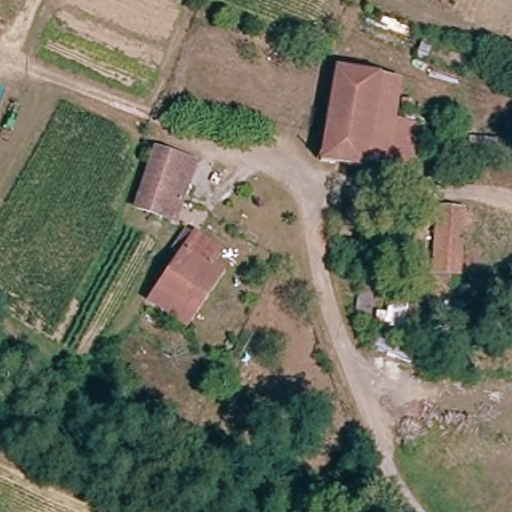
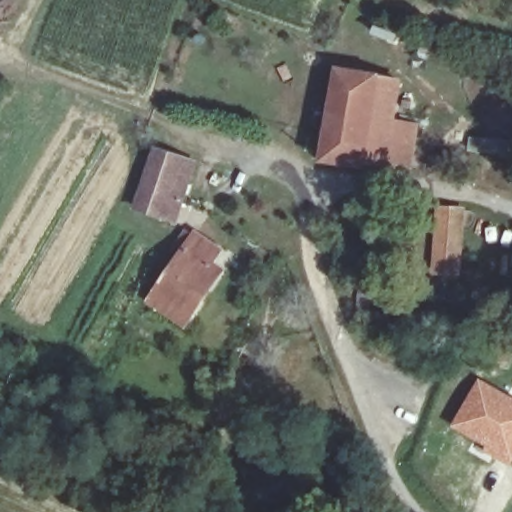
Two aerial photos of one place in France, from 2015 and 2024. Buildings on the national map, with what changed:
unchanged [(362,167),(361,171),(321,164),(335,70),(377,75),(362,167)]
unchanged [(402,80),(396,120),(387,169),(362,167),(377,75),(402,80)]
unchanged [(0,95),(0,87),(2,88),(0,95)]
unchanged [(420,123),(410,174),(387,169),(396,120),(420,123)]
unchanged [(193,160),(173,217),(136,204),(153,147),(193,160)]
unchanged [(474,210),(466,280),(442,278),(448,208),(474,210)]
unchanged [(221,249),(212,264),(224,273),(187,327),(149,302),(194,234),(221,249)]
new [(478,377),(512,396),(512,462),(509,467),(479,449),(481,447),(450,426),(478,377)]

